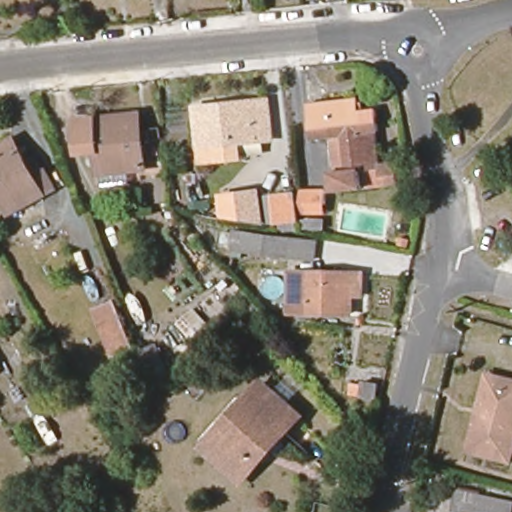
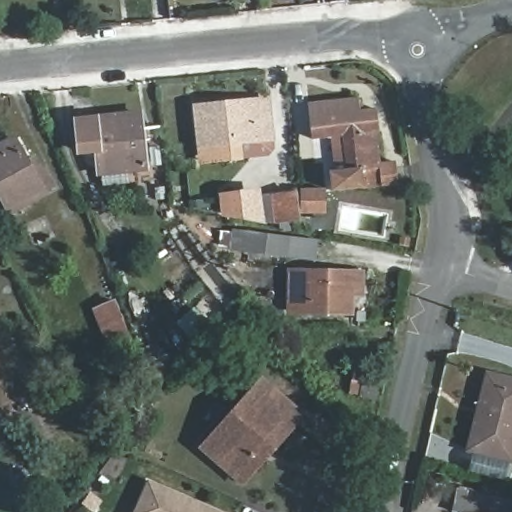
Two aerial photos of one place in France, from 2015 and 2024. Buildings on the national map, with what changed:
unchanged [(311,138),(307,104),(356,96),(358,110),(375,109),(378,131),(373,132),(378,163),(394,161),(398,186),(331,193),(327,172),(334,171),(330,138),(311,138)]
unchanged [(199,161),(197,146),(194,106),(267,99),(271,139),(238,142),(240,158),(199,161)]
unchanged [(96,151),(79,151),(76,120),(139,115),(144,168),(98,173),(96,151)]
unchanged [(56,188),(43,195),(9,214),(0,197),(0,146),(13,139),(22,155),(31,151),(40,168),(44,166),(56,188)]
unchanged [(189,186),(201,185),(204,208),(191,208),(189,186)]
unchanged [(312,214),(301,213),(301,189),(324,190),(324,200),(323,214),(312,214)]
unchanged [(271,224),(271,221),(241,216),(241,214),(229,215),(226,195),(252,192),(253,198),(297,193),(300,221),(271,224)]
unchanged [(497,207),(500,224),(486,227),(483,209),(497,207)]
unchanged [(323,218),(323,229),(303,229),(302,218),(323,218)]
unchanged [(234,233),(286,240),(286,241),(315,245),(312,262),(232,251),(234,233)]
unchanged [(409,240),(407,247),(398,244),(399,237),(409,240)]
unchanged [(288,273),(360,273),(360,296),(350,295),(350,313),(287,313),(288,273)]
unchanged [(114,302),(132,348),(112,356),(94,310),(114,302)]
unchanged [(140,350),(156,345),(168,378),(152,383),(140,350)]
unchanged [(478,415),(488,376),(512,382),(512,461),(469,450),(478,415)]
unchanged [(358,397),(362,382),(377,386),(374,400),(358,397)]
unchanged [(239,481),(203,449),(260,385),(296,418),(277,439),(257,461),(239,481)]
new [(148,481),(219,512),(134,512),(148,481)]
unchanged [(455,510),(458,494),(512,504),(512,507),(511,512),(467,512),(455,510)]
unchanged [(88,495),(97,502),(89,512),(88,512),(79,506),(88,495)]

